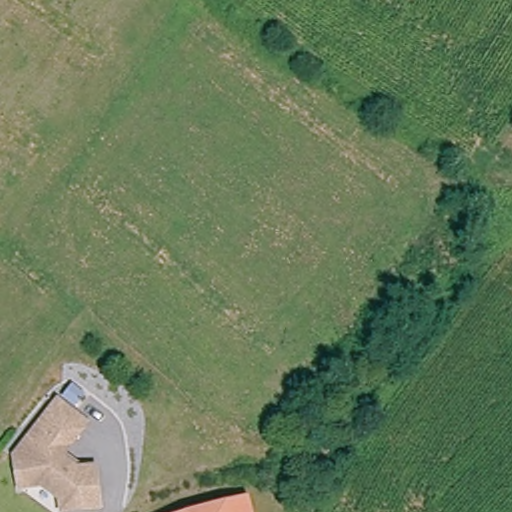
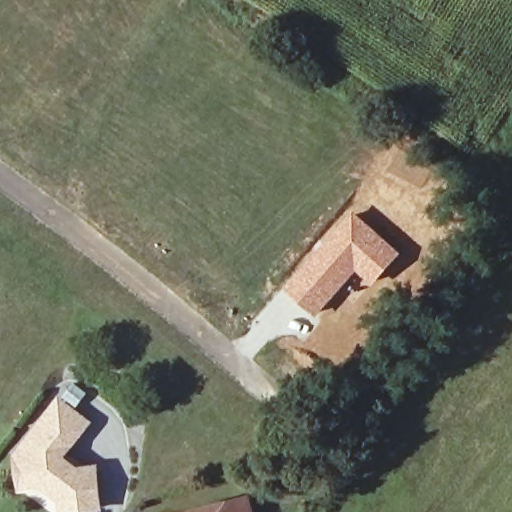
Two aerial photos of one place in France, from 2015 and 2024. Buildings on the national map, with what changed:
new [(350,207),(401,251),(372,285),(357,272),(316,316),(284,288),(350,207)]
unchanged [(60,398),(90,422),(80,435),(61,457),(75,469),(95,468),(98,509),(60,512),(59,500),(41,486),(19,488),(16,461),(15,453),(41,422),(50,411),(60,398)]
unchanged [(250,501),(253,512),(203,512),(250,501)]

